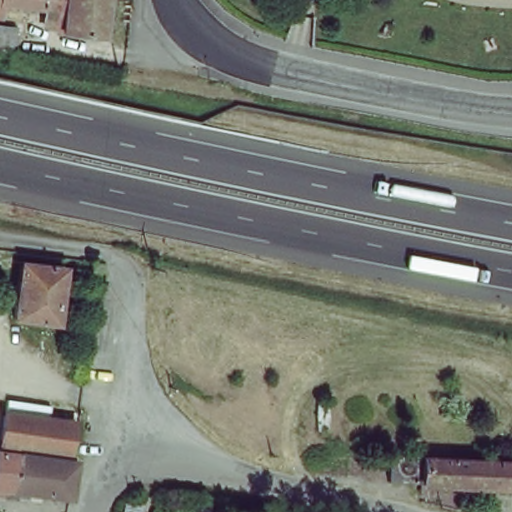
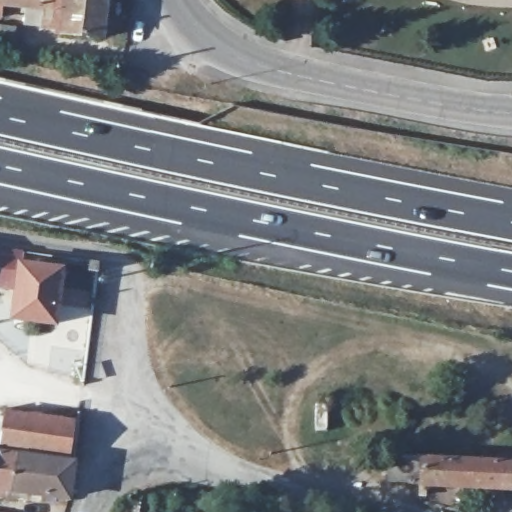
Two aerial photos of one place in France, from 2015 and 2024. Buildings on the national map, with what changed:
unchanged [(3,3),(3,17),(0,17),(0,0),(107,0),(100,38),(59,32),(36,29),(38,8),(3,3)]
unchanged [(10,51),(0,50),(0,39),(11,41),(10,51)]
unchanged [(3,256),(0,256),(0,247),(4,248),(3,256)]
unchanged [(59,266),(51,322),(13,317),(21,261),(59,266)]
unchanged [(64,457),(0,448),(0,423),(0,420),(68,428),(64,457)]
unchanged [(0,489),(0,454),(14,456),(9,491),(0,489)]
unchanged [(512,456),(512,466),(510,466),(509,489),(424,485),(389,483),(389,454),(425,455),(425,458),(494,461),(494,455),(512,456)]
unchanged [(68,500),(9,491),(14,456),(63,461),(74,464),(68,500)]
unchanged [(117,512),(111,512),(111,511),(117,512)]

